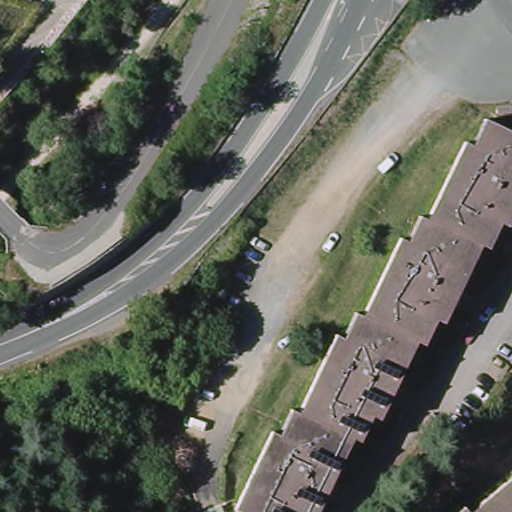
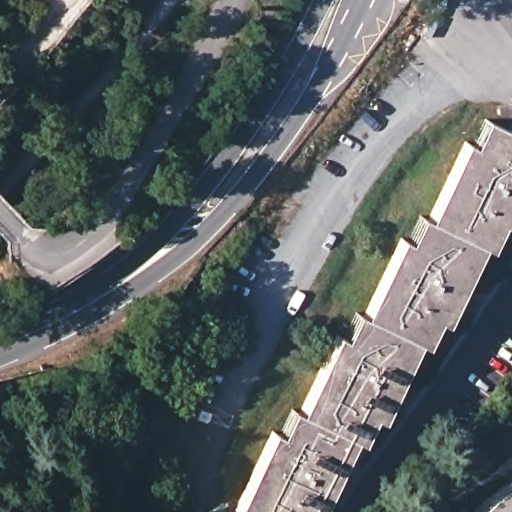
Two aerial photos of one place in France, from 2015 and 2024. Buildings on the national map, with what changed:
unchanged [(382,416),(369,410),(318,512),(233,512),(267,440),(282,446),(332,341),(347,348),(395,241),(414,250),(463,143),(477,150),(487,125),(512,135),(512,199),(507,212),(492,206),(444,315),(429,309),(382,416)]
unchanged [(0,400),(12,395),(14,401),(17,410),(0,416),(0,400)]
unchanged [(512,481),(512,512),(479,512),(512,481)]

